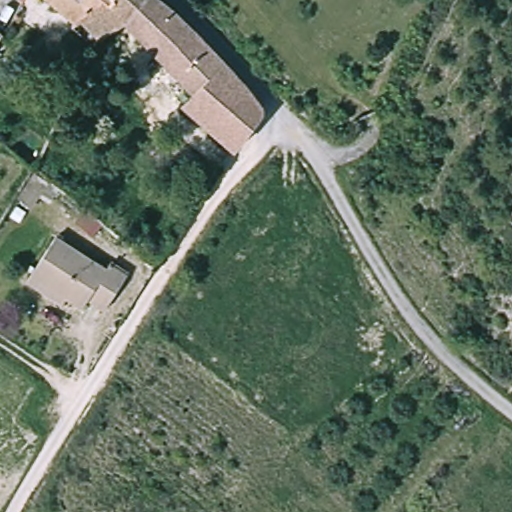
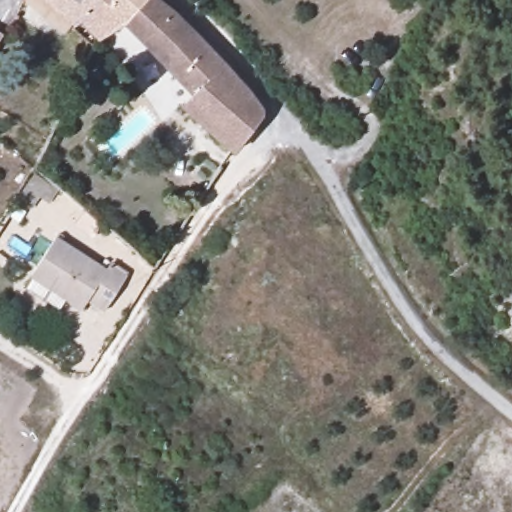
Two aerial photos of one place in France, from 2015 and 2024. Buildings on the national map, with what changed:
unchanged [(46,0),(106,0),(80,26),(46,0)]
unchanged [(102,42),(101,43),(80,26),(106,0),(147,0),(134,17),(125,29),(102,42)]
unchanged [(200,89),(176,62),(171,65),(136,30),(140,24),(134,17),(147,0),(151,0),(169,15),(198,45),(263,113),(240,149),(192,98),(200,89)]
unchanged [(0,42),(0,33),(4,35),(0,42)]
unchanged [(115,53),(102,72),(90,63),(95,53),(101,43),(115,53)]
unchanged [(28,282),(36,272),(61,237),(106,265),(113,256),(131,267),(104,306),(91,297),(83,306),(71,298),(64,308),(28,282)]

